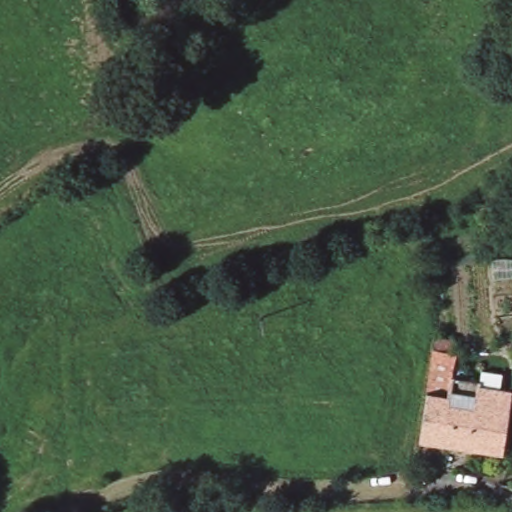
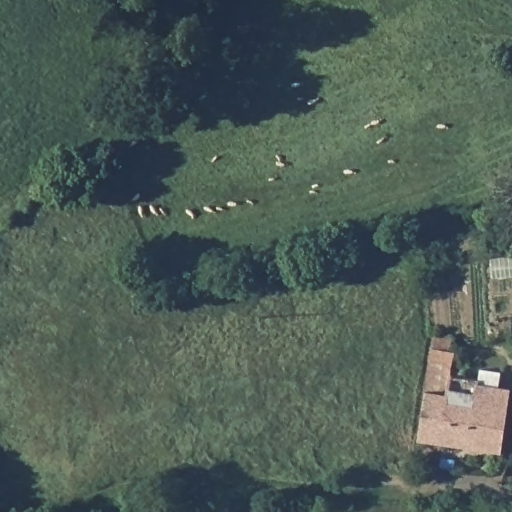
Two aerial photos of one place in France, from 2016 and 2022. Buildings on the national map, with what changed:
unchanged [(502,452),(419,438),(420,435),(421,423),(427,390),(427,386),(435,335),(454,338),(452,350),(456,350),(453,375),(480,378),(480,383),(512,388),(502,452)]

